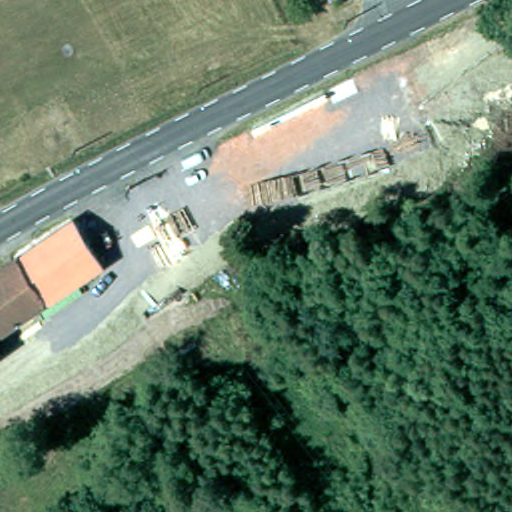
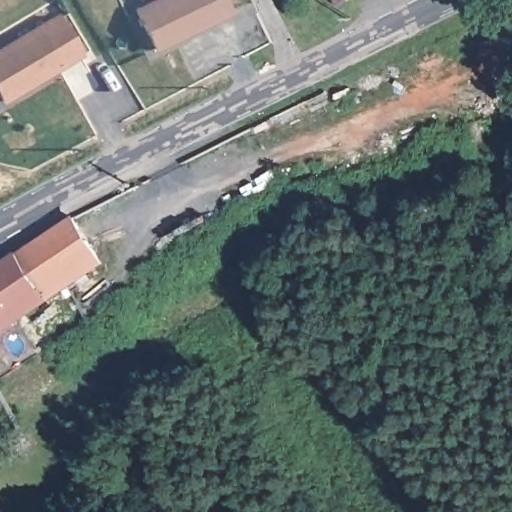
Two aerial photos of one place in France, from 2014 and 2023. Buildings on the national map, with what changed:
new [(232,16),(154,53),(133,9),(151,0),(224,0),(232,16)]
new [(0,102),(0,47),(57,13),(82,57),(2,105),(0,102)]
unchanged [(107,259),(53,296),(21,250),(76,214),(107,259)]
unchanged [(21,250),(53,296),(14,322),(24,336),(5,349),(0,343),(0,264),(21,250)]
unchanged [(5,349),(0,352),(0,343),(5,349)]

